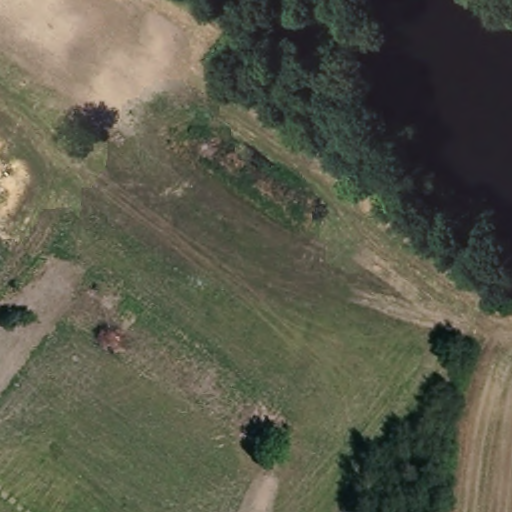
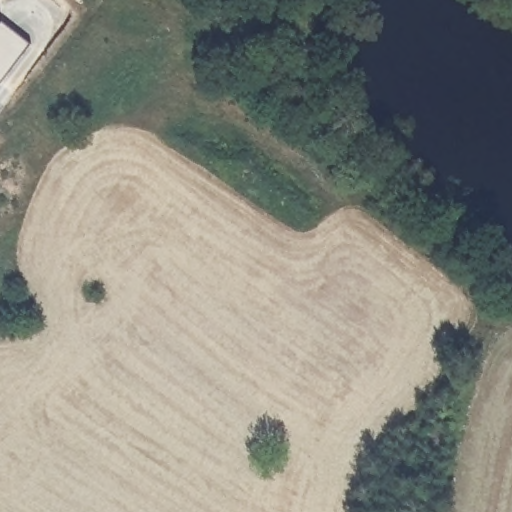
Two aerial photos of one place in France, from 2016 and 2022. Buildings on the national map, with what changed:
new [(30,45),(0,84),(0,26),(2,24),(30,45)]

